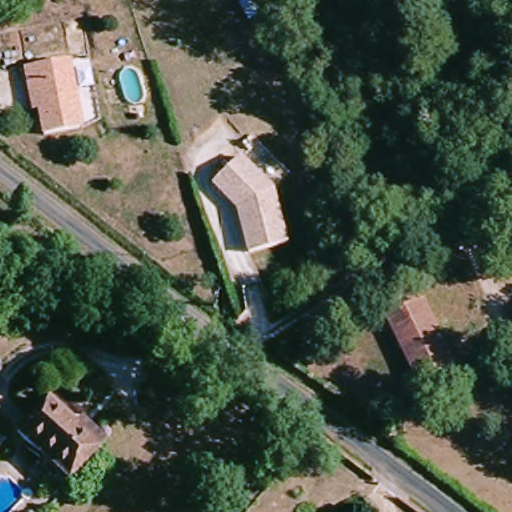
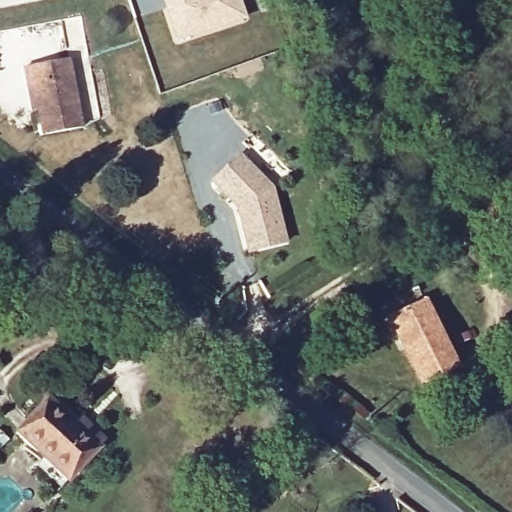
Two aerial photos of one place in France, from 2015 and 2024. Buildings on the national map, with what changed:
new [(249,19),(175,45),(161,0),(242,0),(249,19)]
unchanged [(30,101),(26,85),(71,77),(80,118),(40,126),(36,107),(31,108),(30,101)]
unchanged [(296,243),(259,253),(248,208),(223,182),(250,156),(282,189),(296,243)]
unchanged [(457,367),(420,385),(389,319),(425,301),(457,367)]
unchanged [(36,466),(43,459),(16,433),(48,399),(76,425),(81,419),(105,441),(100,447),(67,482),(61,489),(36,466)]

